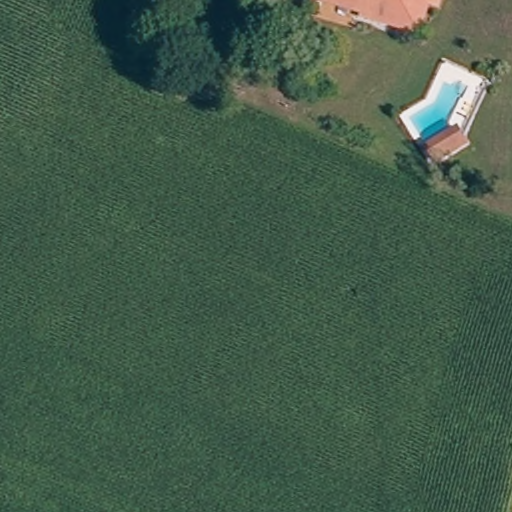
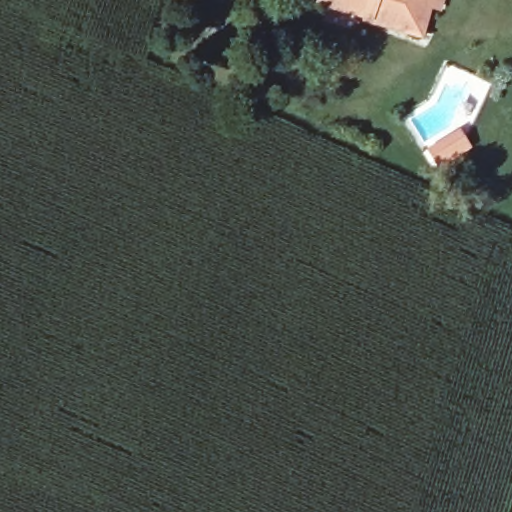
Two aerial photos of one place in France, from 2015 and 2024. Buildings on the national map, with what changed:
unchanged [(354,0),(350,12),(332,5),(321,1),(321,0),(354,0)]
unchanged [(433,13),(425,10),(415,37),(360,16),(366,0),(439,0),(434,13),(433,13)]
unchanged [(475,147),(444,164),(436,150),(467,132),(475,147)]

